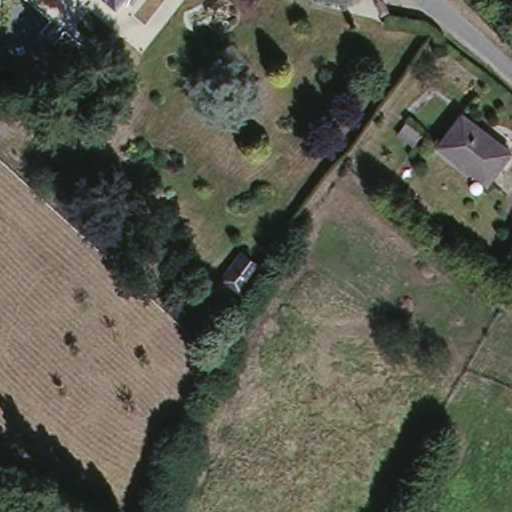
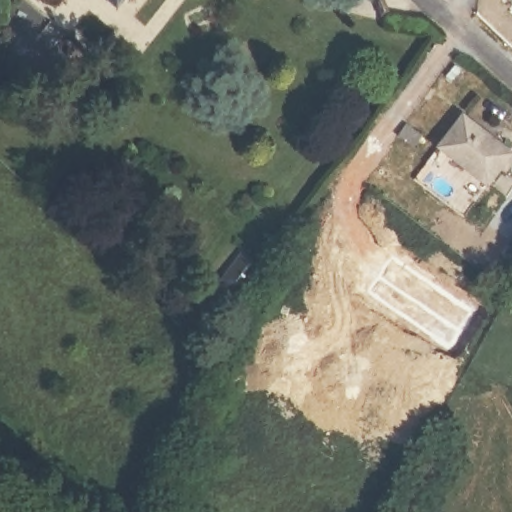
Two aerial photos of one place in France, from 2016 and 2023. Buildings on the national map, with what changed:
unchanged [(135,0),(121,16),(102,0),(135,0)]
unchanged [(369,0),(394,0),(399,11),(378,18),(369,0)]
unchanged [(489,185),(440,149),(463,117),(500,145),(512,154),(512,155),(505,163),(489,185)]
unchanged [(264,261),(237,295),(221,284),(247,249),(264,261)]

